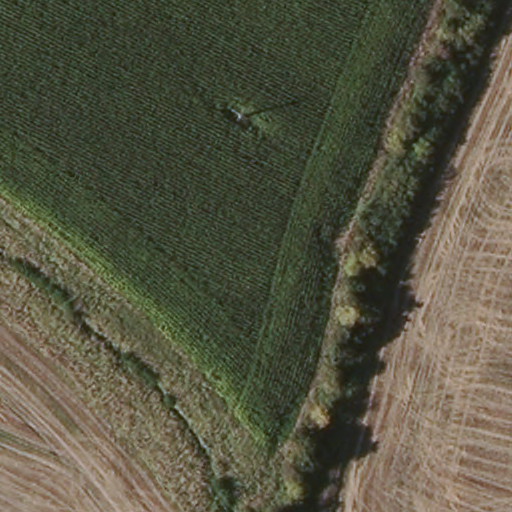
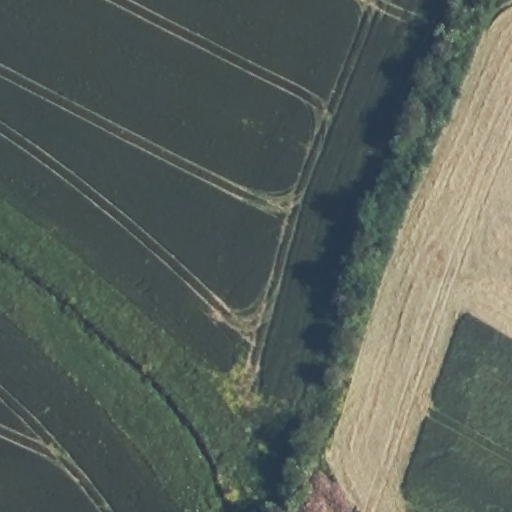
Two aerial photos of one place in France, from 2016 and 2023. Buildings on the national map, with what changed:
[]

